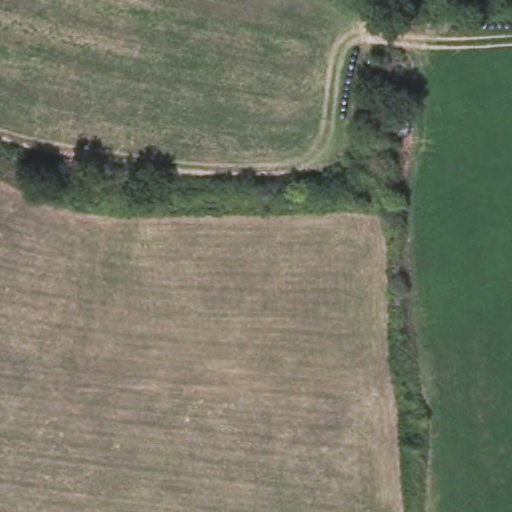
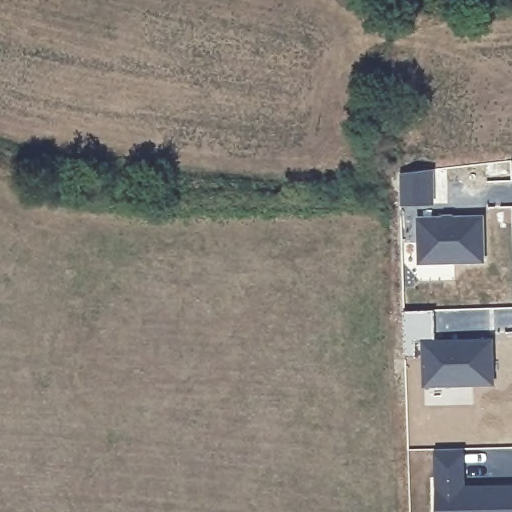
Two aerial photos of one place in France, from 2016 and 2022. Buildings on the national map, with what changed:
new [(430,169),(432,203),(401,204),(399,174),(430,169)]
new [(480,217),(481,261),(418,264),(416,219),(480,217)]
new [(424,343),(491,340),(492,383),(425,385),(424,343)]
new [(464,489),(512,486),(512,512),(436,512),(437,487),(433,487),(432,449),(462,449),(464,489)]

